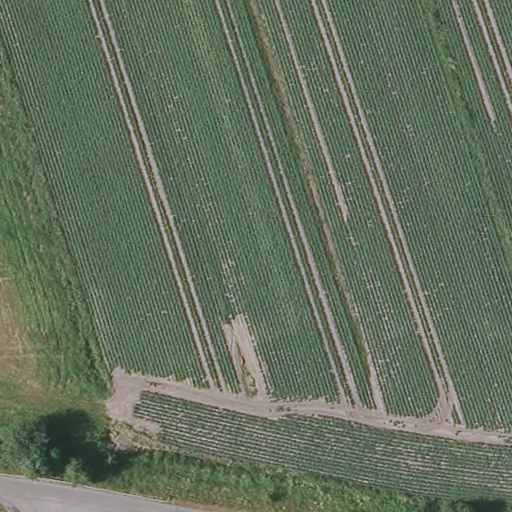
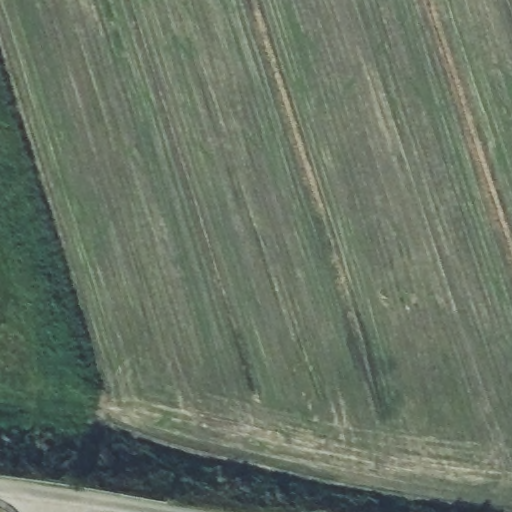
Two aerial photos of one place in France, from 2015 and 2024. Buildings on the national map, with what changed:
[]

